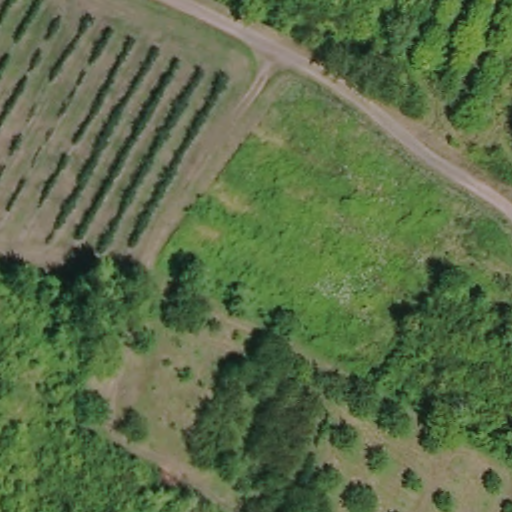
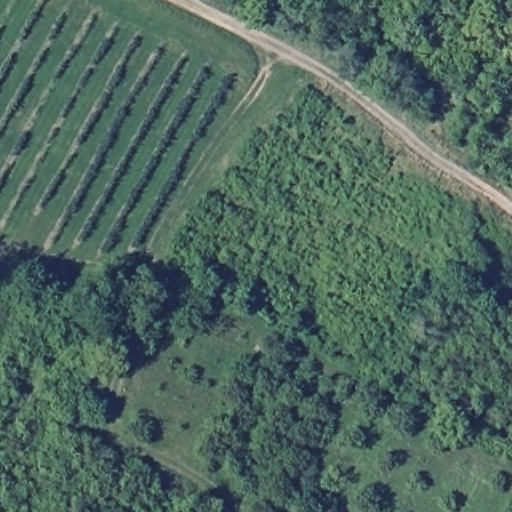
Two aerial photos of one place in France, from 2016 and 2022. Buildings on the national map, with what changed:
[]

